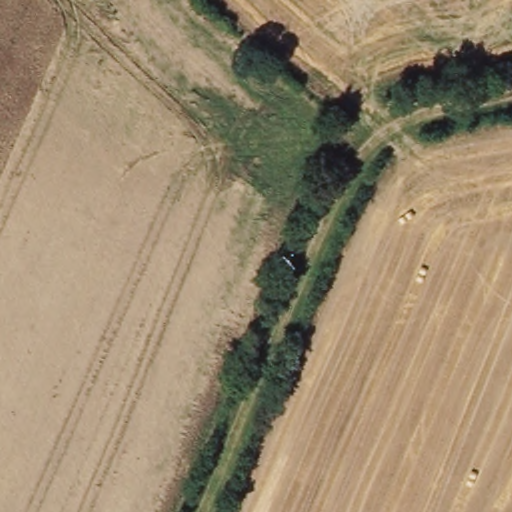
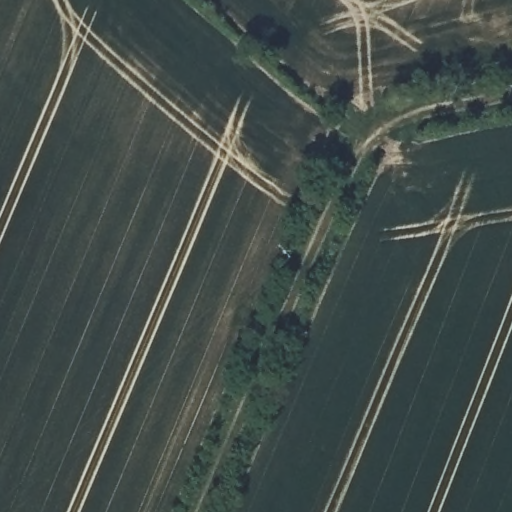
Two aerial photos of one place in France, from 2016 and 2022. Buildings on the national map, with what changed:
[]

